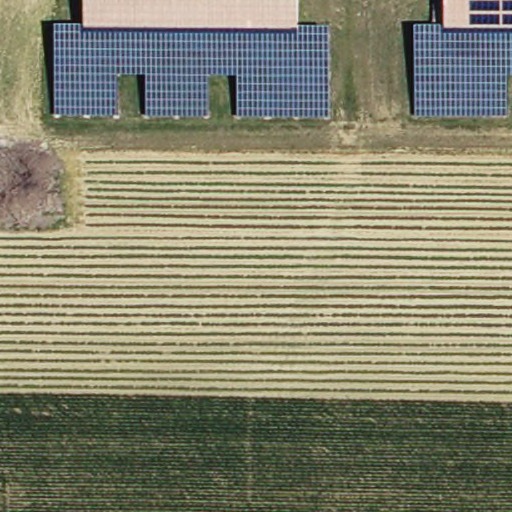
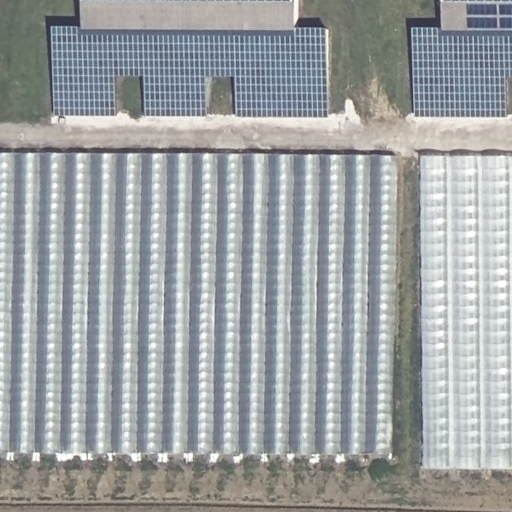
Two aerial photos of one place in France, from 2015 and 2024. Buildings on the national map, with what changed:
unchanged [(235,80),(211,80),(211,117),(145,117),(145,79),(119,79),(118,116),(56,116),(57,24),(84,24),(84,0),(300,0),(299,31),(330,30),(328,119),(237,118),(235,80)]
unchanged [(508,82),(509,119),(415,119),(416,30),(445,30),(445,0),(512,0),(512,82),(508,82)]
new [(0,154),(396,156),(390,462),(0,455),(0,154)]
new [(428,469),(424,155),(512,155),(512,469),(428,469)]

